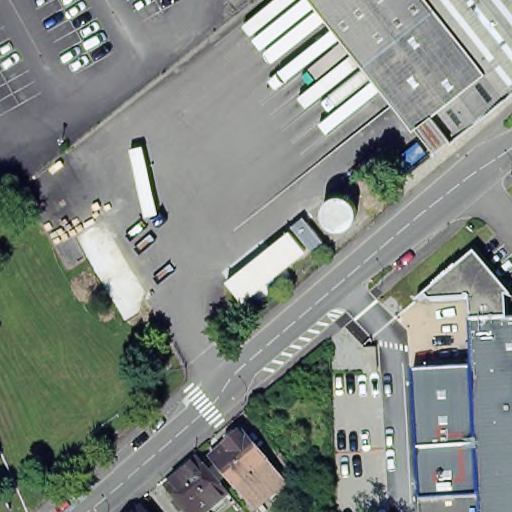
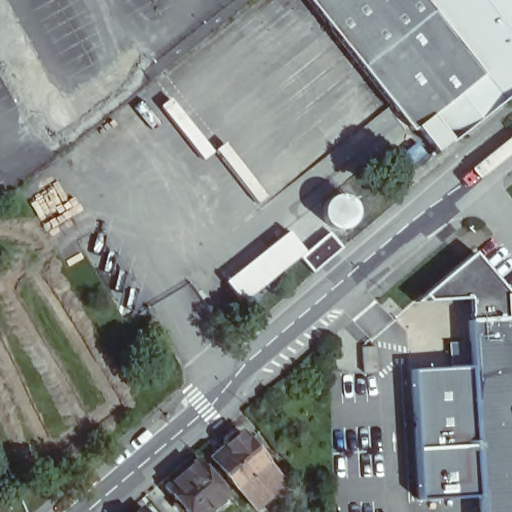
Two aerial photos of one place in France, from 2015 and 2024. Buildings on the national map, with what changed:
unchanged [(305,0),(512,0),(512,94),(435,155),(417,132),(412,136),(305,0)]
unchanged [(241,301),(226,282),(248,264),(272,245),(289,231),(305,251),(285,266),(262,285),(241,301)]
unchanged [(476,320),(474,299),(433,302),(429,302),(429,296),(480,253),(512,291),(512,296),(510,297),(512,318),(512,512),(485,512),(474,320),(476,320)]
unchanged [(375,347),(377,372),(364,373),(362,348),(375,347)]
unchanged [(259,507),(216,457),(230,446),(229,444),(229,437),(236,431),(243,431),(244,434),(246,432),(289,482),(259,507)]
unchanged [(232,494),(211,512),(192,512),(171,487),(203,459),(232,494)]

